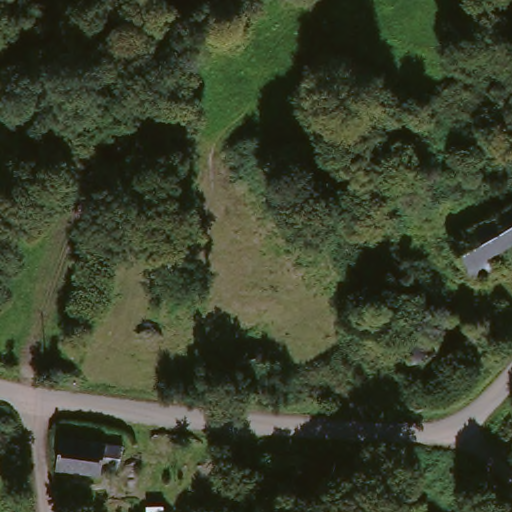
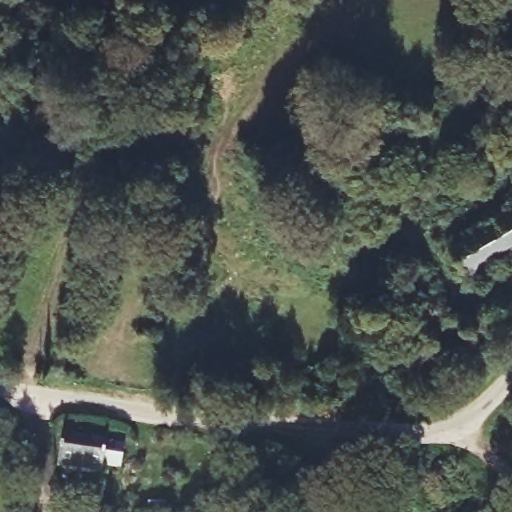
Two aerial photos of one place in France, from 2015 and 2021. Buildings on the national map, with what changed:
unchanged [(484,213),(512,199),(512,222),(493,231),(484,213)]
unchanged [(496,280),(476,292),(455,251),(493,231),(512,222),(512,256),(494,265),(496,280)]
unchanged [(429,328),(441,357),(408,370),(397,339),(429,328)]
unchanged [(252,364),(260,363),(270,398),(246,406),(234,372),(252,364)]
unchanged [(419,416),(409,416),(404,412),(404,406),(413,397),(419,416)]
unchanged [(66,470),(69,437),(112,442),(109,476),(66,470)]

